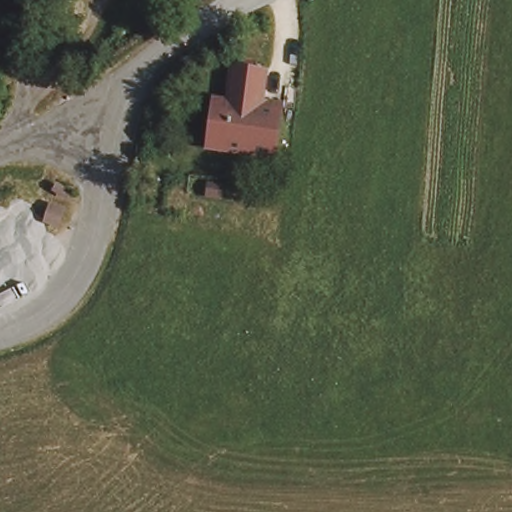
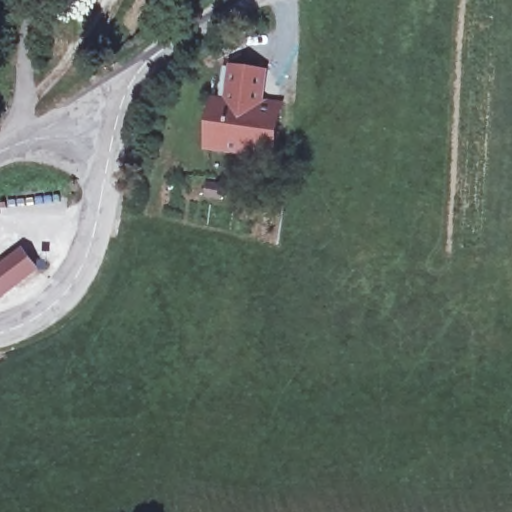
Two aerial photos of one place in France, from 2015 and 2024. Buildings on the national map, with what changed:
unchanged [(233,64),(264,70),(260,98),(280,102),(279,108),(273,152),(222,143),(209,142),(216,97),(228,99),(233,64)]
new [(41,271),(1,300),(0,297),(0,265),(23,247),(41,271)]

